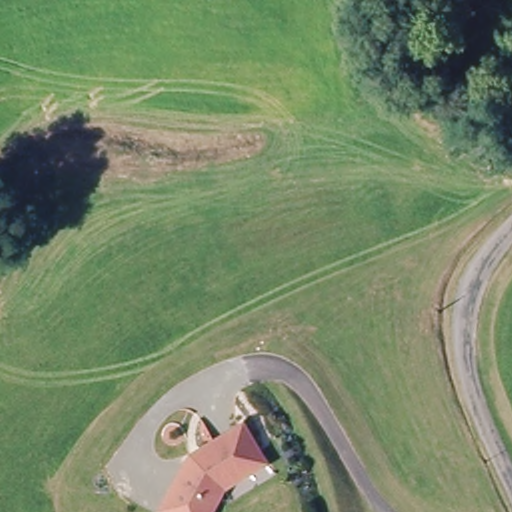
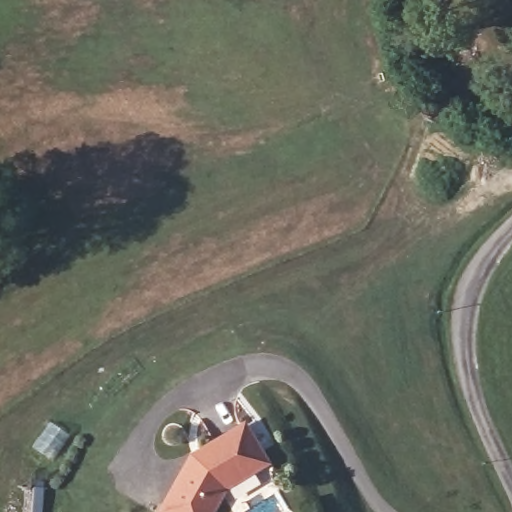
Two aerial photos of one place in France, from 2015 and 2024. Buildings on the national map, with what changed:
unchanged [(175,512),(166,507),(198,452),(251,423),(262,444),(271,461),(257,468),(229,484),(212,512),(175,512)]

